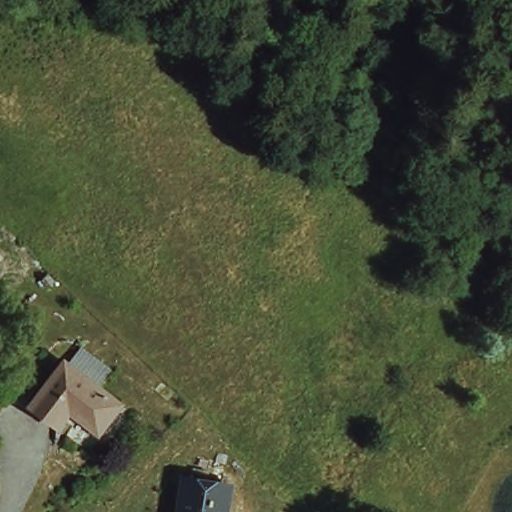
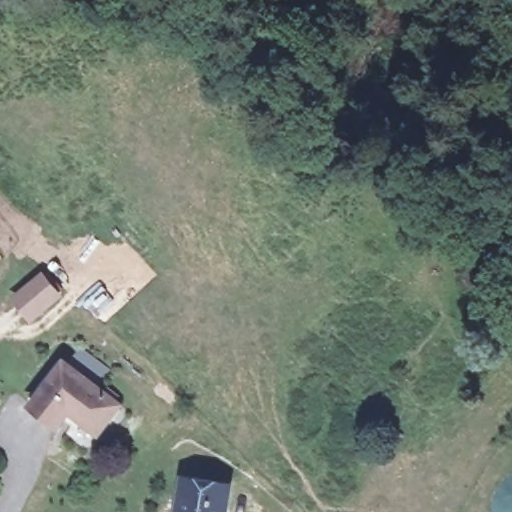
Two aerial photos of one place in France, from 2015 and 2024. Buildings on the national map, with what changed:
new [(30,321),(10,300),(40,274),(59,295),(30,321)]
unchanged [(113,402),(93,427),(70,410),(57,424),(30,403),(61,360),(113,402)]
unchanged [(235,492),(231,512),(184,512),(187,484),(235,492)]

